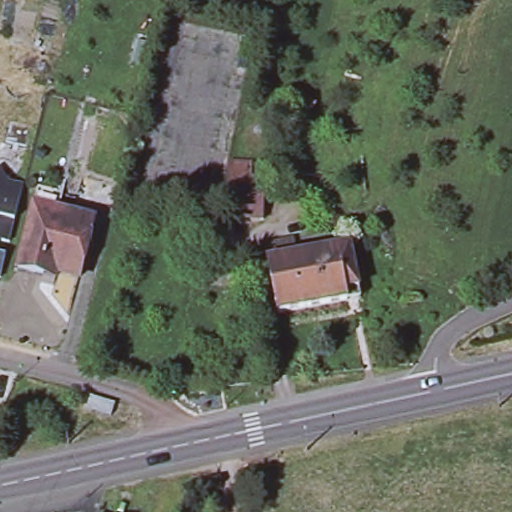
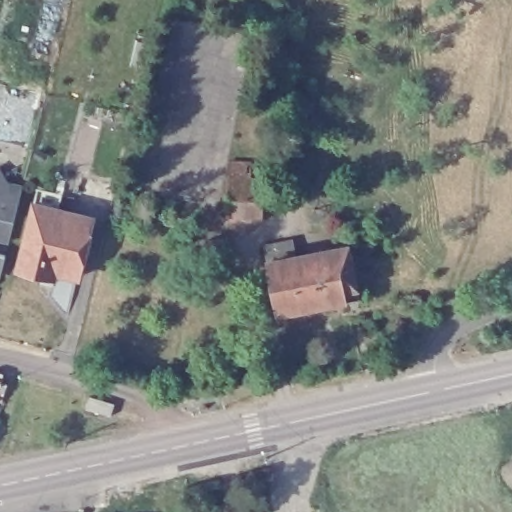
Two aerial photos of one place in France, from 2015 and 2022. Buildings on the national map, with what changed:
unchanged [(264,217),(229,216),(231,176),(231,160),(253,161),(253,177),(266,177),(264,217)]
unchanged [(1,188),(18,192),(15,203),(4,246),(0,261),(0,185),(1,188)]
unchanged [(45,278),(20,271),(36,207),(40,191),(64,197),(60,213),(94,221),(79,280),(58,275),(56,281),(45,278)]
unchanged [(349,298),(278,312),(268,260),(265,244),(293,239),(296,254),(349,243),(358,285),(360,296),(349,298)]

